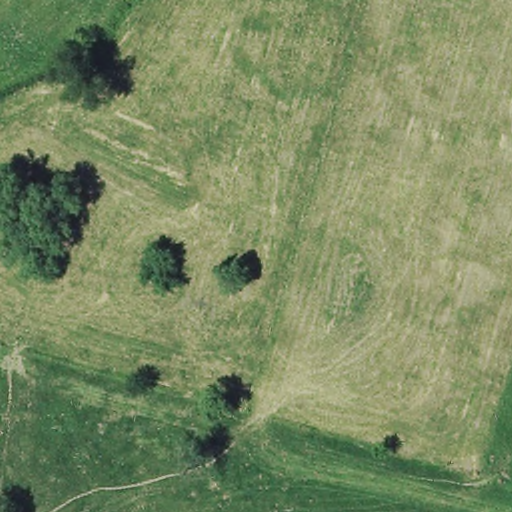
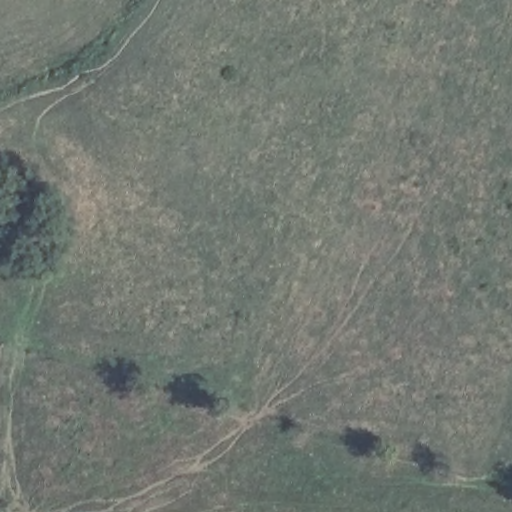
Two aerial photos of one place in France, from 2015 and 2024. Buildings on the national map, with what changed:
[]

